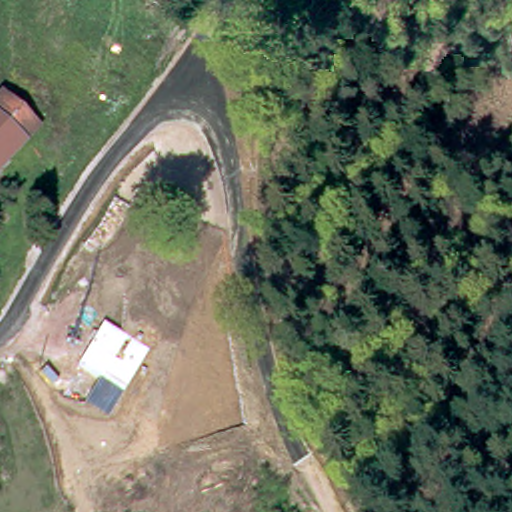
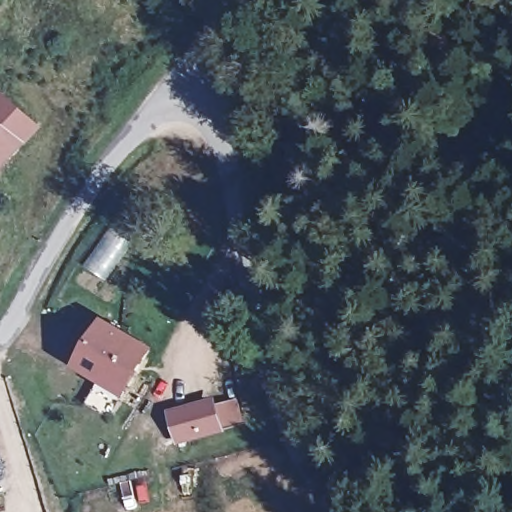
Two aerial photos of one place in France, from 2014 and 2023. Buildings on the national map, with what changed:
unchanged [(0,126),(0,96),(32,123),(17,140),(0,126)]
unchanged [(17,140),(0,161),(0,126),(17,140)]
new [(154,348),(123,399),(110,418),(85,404),(97,383),(74,369),(104,318),(154,348)]
new [(216,397),(218,403),(237,398),(243,421),(223,428),(223,433),(176,446),(167,410),(216,397)]

